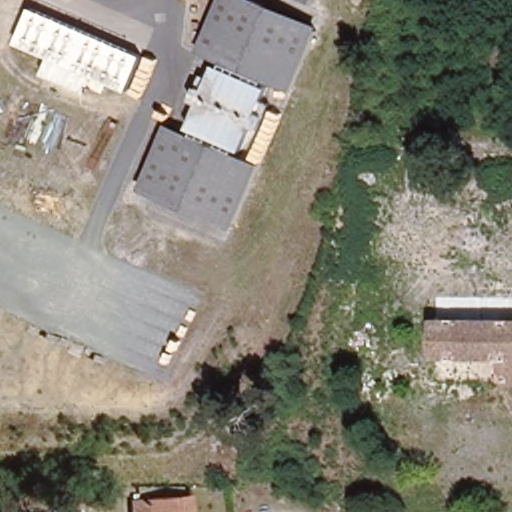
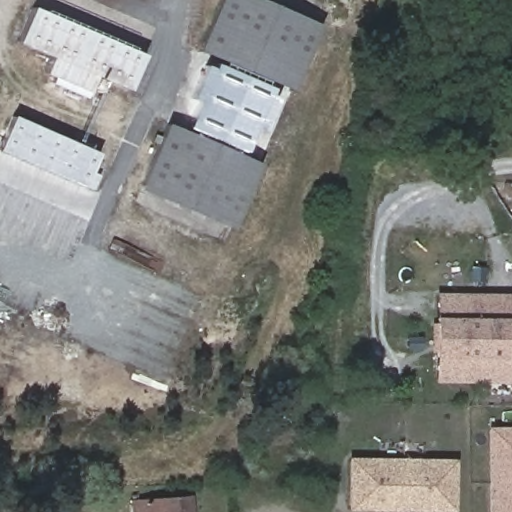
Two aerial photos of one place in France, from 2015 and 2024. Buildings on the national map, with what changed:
unchanged [(231,226),(140,183),(223,0),(248,0),(319,33),(231,226)]
unchanged [(145,60),(130,94),(96,79),(90,94),(47,75),(53,60),(21,45),(36,11),(145,60)]
new [(92,192),(0,150),(0,145),(14,117),(98,155),(91,171),(100,176),(92,192)]
demolished [(444,242),(444,262),(420,262),(418,242),(444,242)]
new [(512,293),(512,300),(491,300),(491,318),(436,320),(437,293),(512,293)]
unchanged [(491,300),(512,300),(512,380),(436,380),(436,320),(491,318),(491,300)]
new [(512,431),(512,512),(487,512),(487,431),(512,431)]
new [(452,511),(401,510),(401,462),(452,461),(452,511)]
new [(401,462),(401,510),(348,509),(350,462),(401,462)]
unchanged [(193,512),(135,512),(135,503),(192,494),(193,512)]

